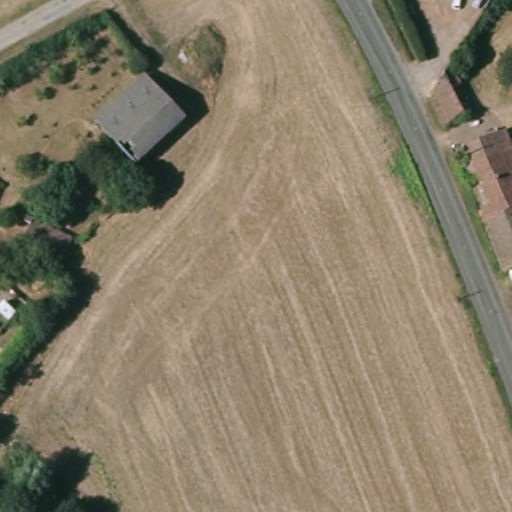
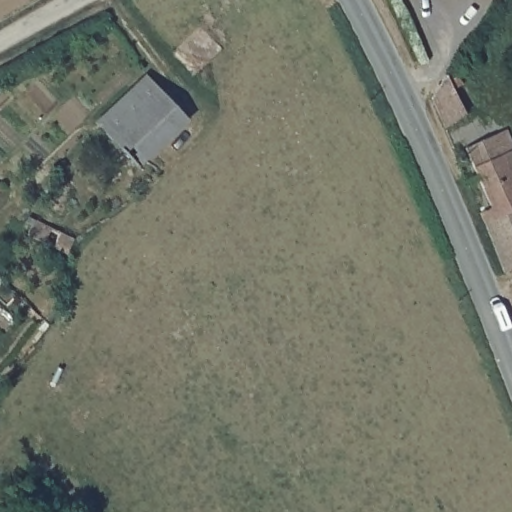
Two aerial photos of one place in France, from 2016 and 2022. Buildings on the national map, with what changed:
unchanged [(447,71),(457,87),(452,92),(462,113),(442,136),(428,100),(447,71)]
unchanged [(159,101),(108,141),(92,122),(143,81),(159,101)]
unchanged [(182,130),(132,170),(108,141),(159,101),(182,130)]
unchanged [(506,144),(507,148),(510,147),(512,151),(512,205),(476,224),(471,212),(483,206),(457,149),(498,128),(506,144)]
unchanged [(512,266),(497,272),(476,224),(512,205),(512,266)]
unchanged [(27,229),(32,219),(47,226),(70,239),(62,254),(23,237),(27,229)]

